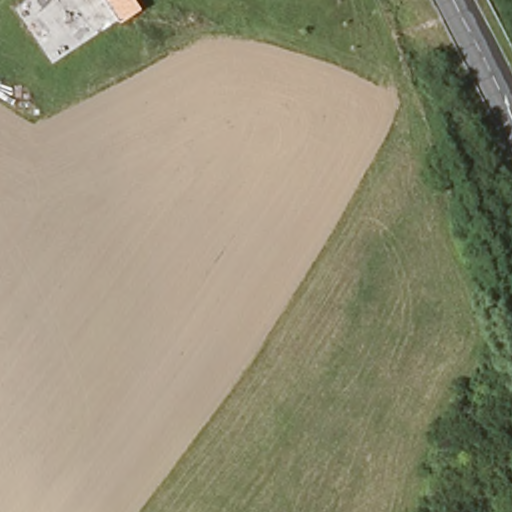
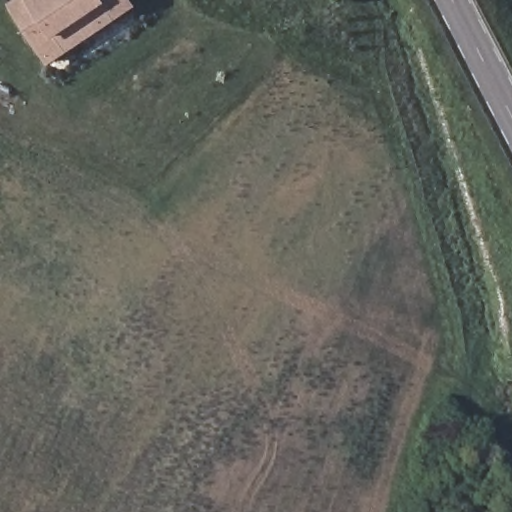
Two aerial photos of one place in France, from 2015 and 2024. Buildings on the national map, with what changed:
new [(138,5),(101,30),(91,15),(45,46),(17,5),(25,0),(135,0),(138,5)]
new [(91,15),(101,30),(55,61),(45,46),(91,15)]

